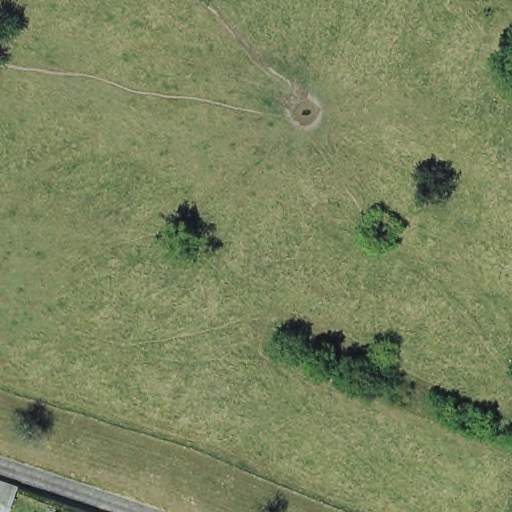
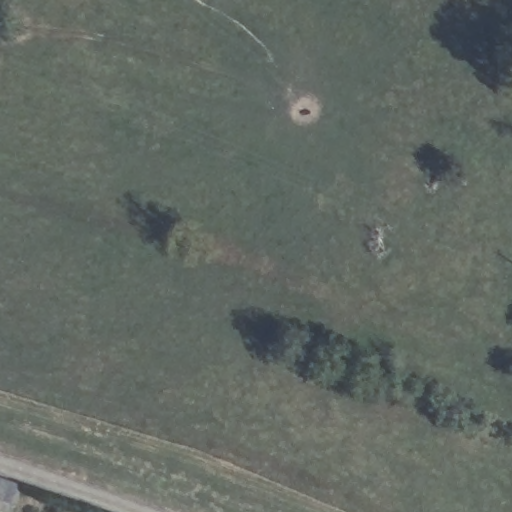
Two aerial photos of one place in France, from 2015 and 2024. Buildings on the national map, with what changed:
unchanged [(20,486),(12,511),(0,507),(0,480),(20,486)]

